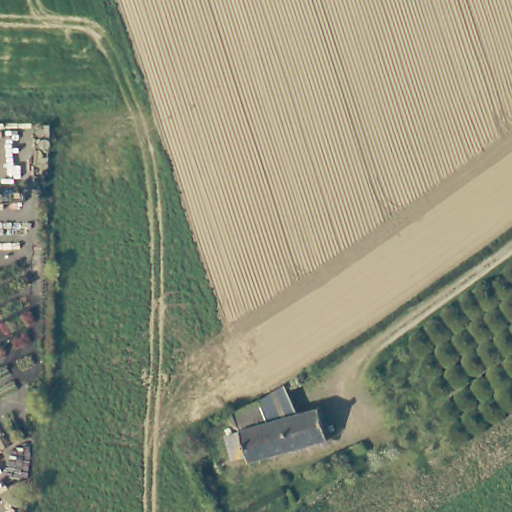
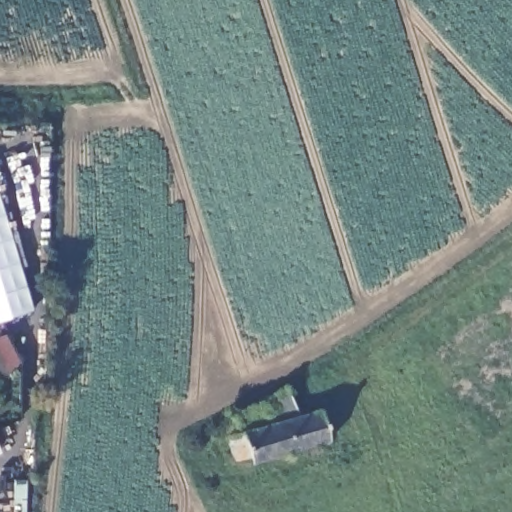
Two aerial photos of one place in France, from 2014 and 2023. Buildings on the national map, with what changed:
new [(32,311),(0,320),(0,202),(32,311)]
unchanged [(268,405),(321,370),(329,383),(317,391),(313,385),(308,387),(317,416),(274,428),(265,407),(268,405)]
unchanged [(274,428),(317,416),(326,415),(333,446),(255,468),(253,460),(238,467),(231,443),(245,437),(238,418),(265,407),(274,428)]

